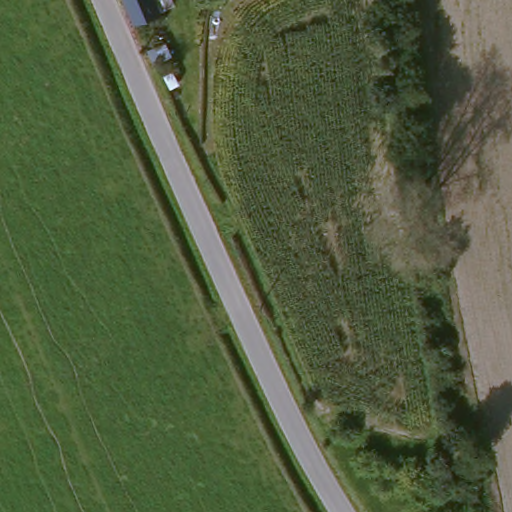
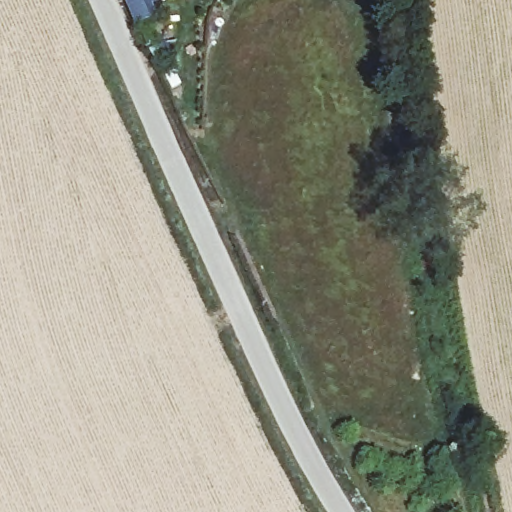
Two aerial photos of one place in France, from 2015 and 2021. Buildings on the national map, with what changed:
unchanged [(127,0),(158,0),(163,12),(137,24),(127,0)]

